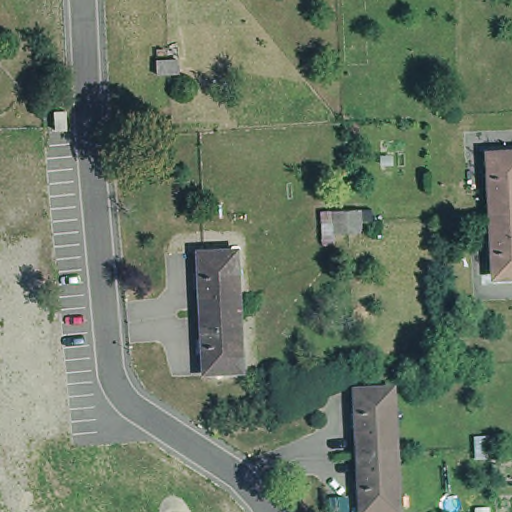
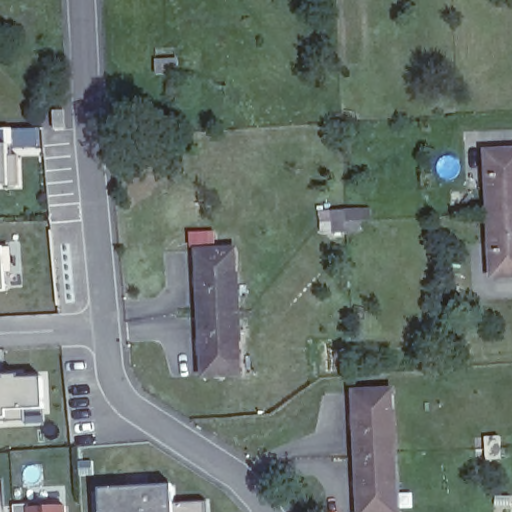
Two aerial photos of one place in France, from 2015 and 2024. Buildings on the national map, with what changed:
unchanged [(172,71),(152,72),(152,59),(172,59),(172,71)]
new [(0,188),(0,148),(7,148),(7,188),(0,188)]
unchanged [(500,276),(492,156),(512,154),(512,275),(500,276)]
unchanged [(348,231),(328,235),(325,225),(345,219),(348,231)]
new [(3,293),(0,293),(0,252),(2,252),(3,293)]
unchanged [(240,375),(203,377),(197,254),(232,252),(240,375)]
new [(44,412),(20,410),(22,424),(0,423),(0,379),(43,378),(44,412)]
unchanged [(362,512),(360,394),(394,393),(398,512),(362,512)]
unchanged [(495,462),(483,462),(482,442),(494,441),(495,462)]
new [(174,486),(175,504),(207,502),(207,512),(103,512),(102,490),(174,486)]
new [(27,505),(28,508),(67,506),(67,512),(14,512),(13,506),(27,505)]

